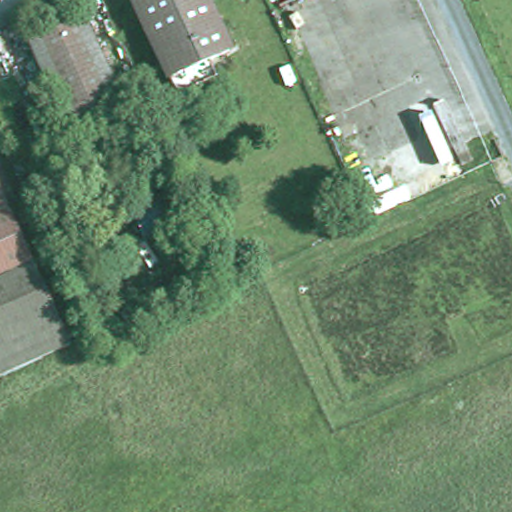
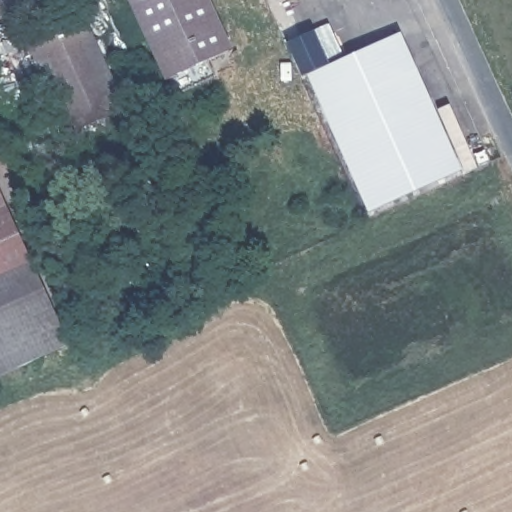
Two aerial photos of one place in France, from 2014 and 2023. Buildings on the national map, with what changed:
unchanged [(140,0),(212,0),(234,49),(210,59),(217,76),(180,92),(140,0)]
unchanged [(62,27),(65,32),(87,22),(127,111),(72,136),(31,42),(62,27)]
new [(462,170),(369,212),(307,77),(401,33),(462,170)]
unchanged [(0,378),(0,185),(72,347),(0,378)]

